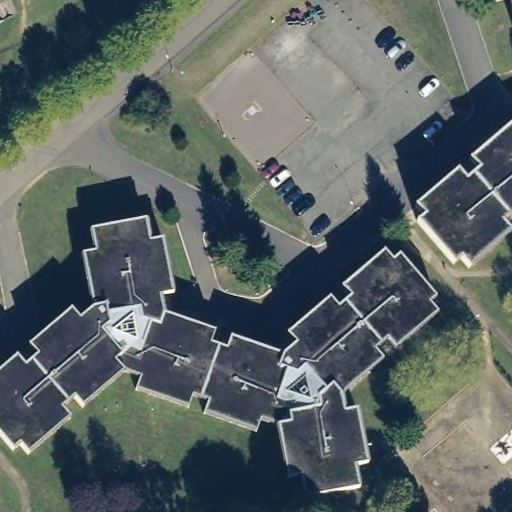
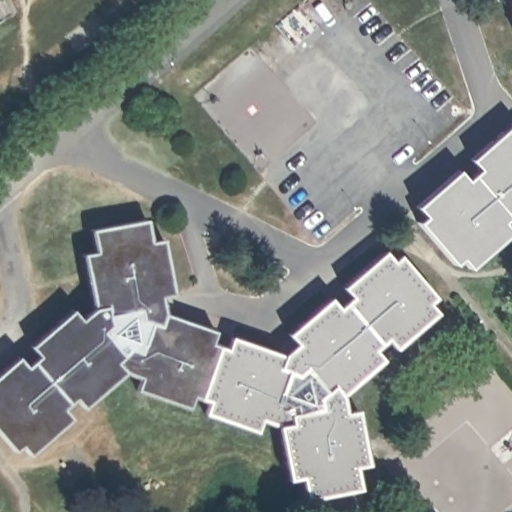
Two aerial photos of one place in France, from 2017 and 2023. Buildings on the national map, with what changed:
unchanged [(506,0),(512,0),(512,33),(506,0)]
unchanged [(502,225),(512,235),(468,270),(459,260),(451,266),(415,225),(422,217),(412,207),(456,170),(465,180),(480,168),(470,160),(509,124),(512,126),(512,217),(502,225)]
unchanged [(391,261),(402,254),(436,299),(427,306),(439,315),(397,352),(387,340),(374,352),(382,362),(342,393),(345,413),(360,411),(365,465),(353,468),(359,490),(305,499),(302,479),(287,481),(277,422),(260,421),(253,434),(205,413),(207,401),(191,396),(185,409),(135,388),(139,376),(123,370),(83,407),(75,400),(61,412),(70,422),(30,457),(20,448),(13,453),(0,438),(0,370),(15,356),(27,366),(37,356),(29,345),(70,311),(80,322),(94,307),(82,252),(96,248),(92,231),(146,218),(152,242),(165,239),(174,295),(157,300),(165,315),(217,332),(210,343),(227,351),(233,335),(283,355),(295,343),(285,331),(327,298),(338,309),(349,297),(340,288),(382,249),(391,261)]

